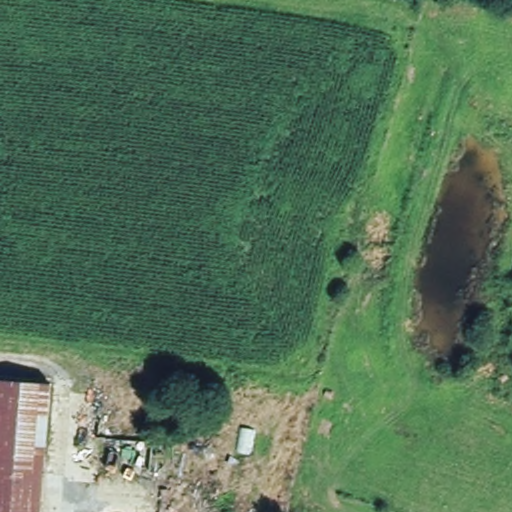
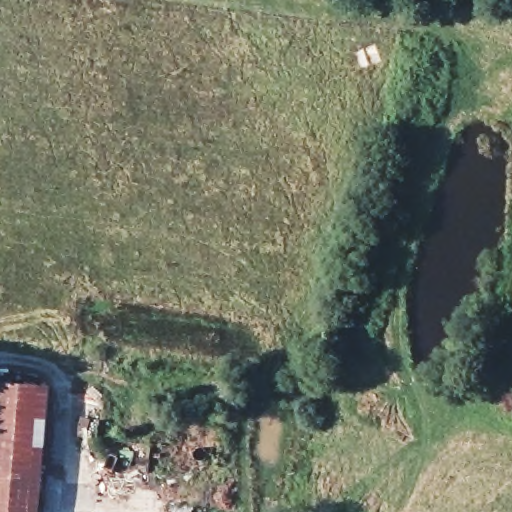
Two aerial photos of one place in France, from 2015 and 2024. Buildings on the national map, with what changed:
unchanged [(42,512),(0,512),(0,380),(54,385),(42,512)]

